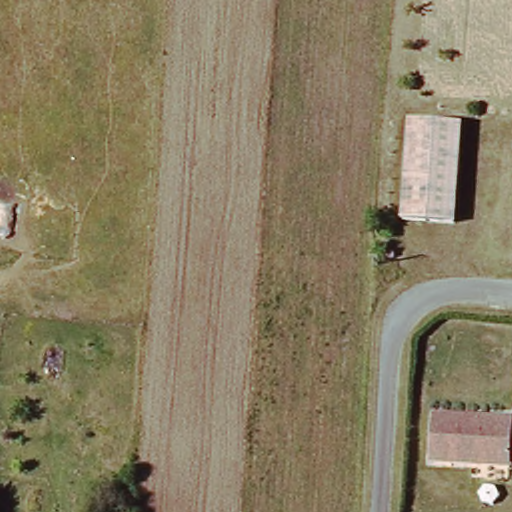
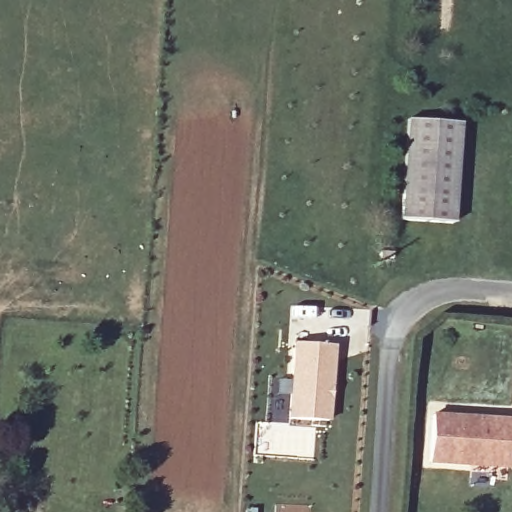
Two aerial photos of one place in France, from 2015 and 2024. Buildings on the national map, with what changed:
unchanged [(450,226),(400,222),(408,122),(458,126),(455,175),(450,226)]
new [(292,343),(330,346),(324,421),(286,418),(292,343)]
unchanged [(511,423),(512,424),(512,461),(509,461),(509,466),(427,460),(430,413),(460,416),(474,417),(511,418),(511,423)]

